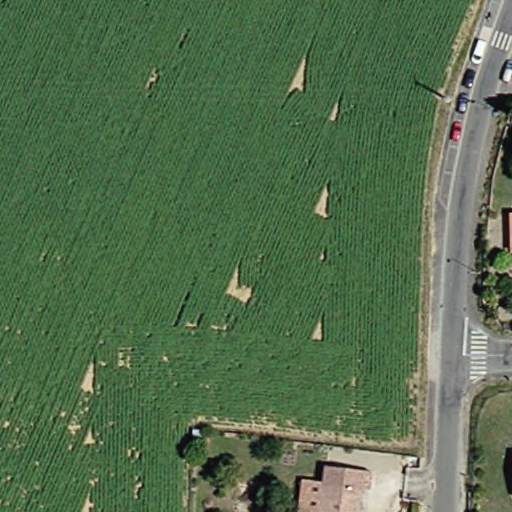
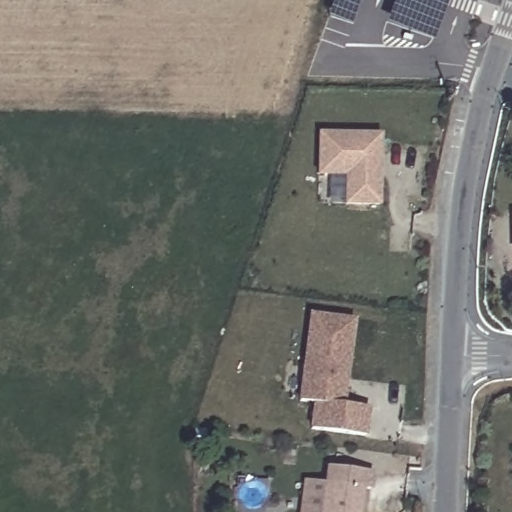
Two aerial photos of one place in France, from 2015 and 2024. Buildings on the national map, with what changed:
new [(351,25),(327,16),(333,0),(360,0),(351,25)]
new [(395,0),(449,0),(434,41),(386,24),(395,0)]
new [(387,206),(350,206),(350,177),(323,176),(322,130),(388,130),(387,206)]
new [(352,403),(365,404),(363,431),(312,426),(316,402),(303,400),(312,311),(362,316),(352,403)]
unchanged [(334,481),(337,467),(381,474),(376,496),(372,495),(369,512),(308,512),(314,478),(334,481)]

